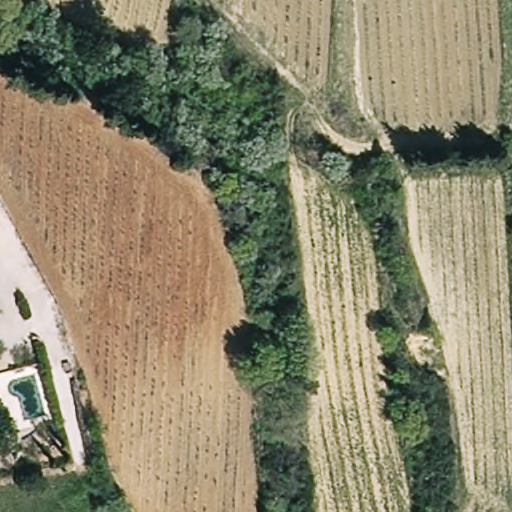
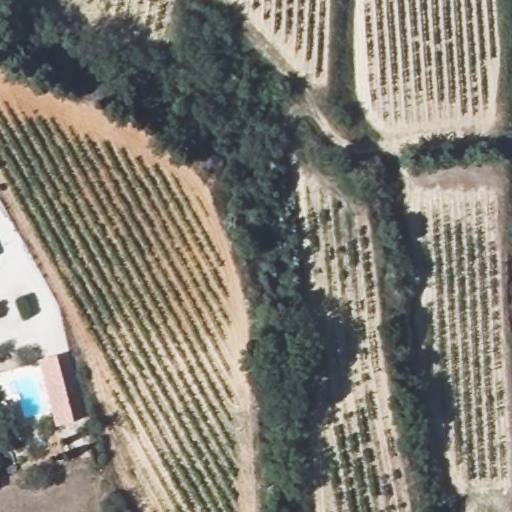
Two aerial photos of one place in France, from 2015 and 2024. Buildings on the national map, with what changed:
new [(78,421),(57,428),(38,361),(61,355),(78,421)]

